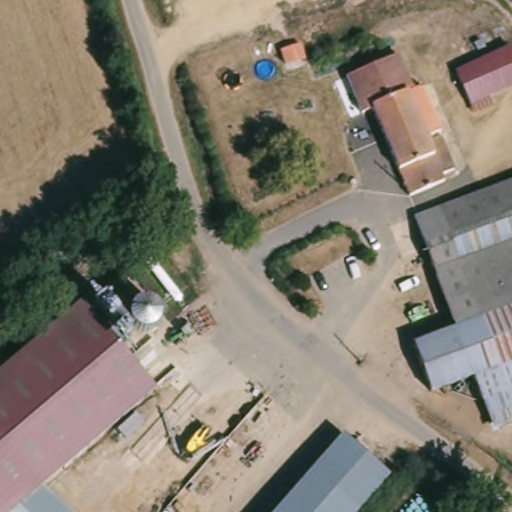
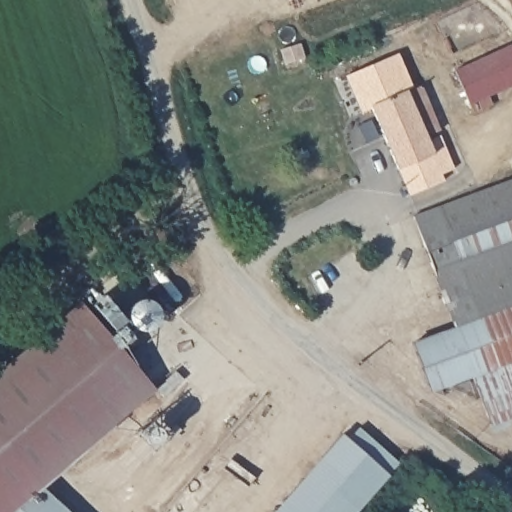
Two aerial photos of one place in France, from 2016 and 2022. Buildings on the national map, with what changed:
unchanged [(491,99),(495,107),(474,115),(455,69),(512,46),(512,90),(491,99)]
unchanged [(448,130),(444,132),(462,172),(448,178),(450,183),(416,197),(377,111),(365,116),(350,83),(350,76),(394,57),(410,92),(428,85),(448,130)]
unchanged [(477,375),(436,390),(417,339),(458,324),(417,213),(512,179),(512,426),(499,430),(477,375)]
unchanged [(162,315),(161,319),(159,326),(154,331),(149,333),(142,334),(136,333),(132,331),(129,327),(127,323),(126,317),(127,311),(129,306),(132,302),(137,300),(145,299),(152,301),(157,305),(162,315)]
unchanged [(158,393),(44,487),(14,464),(0,480),(0,371),(81,301),(158,393)]
unchanged [(276,512),(344,431),(393,474),(361,512),(276,512)]
unchanged [(74,512),(0,512),(0,480),(14,464),(74,512)]

